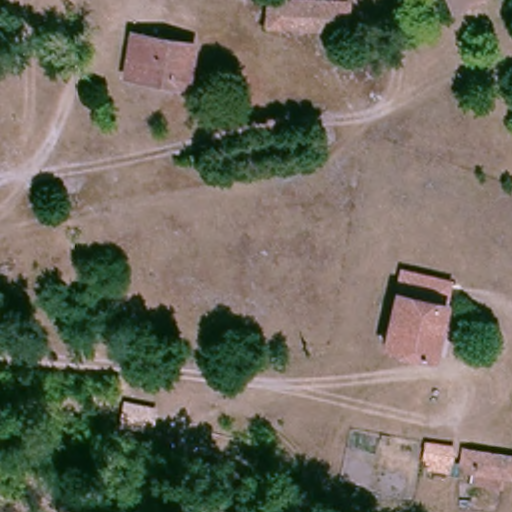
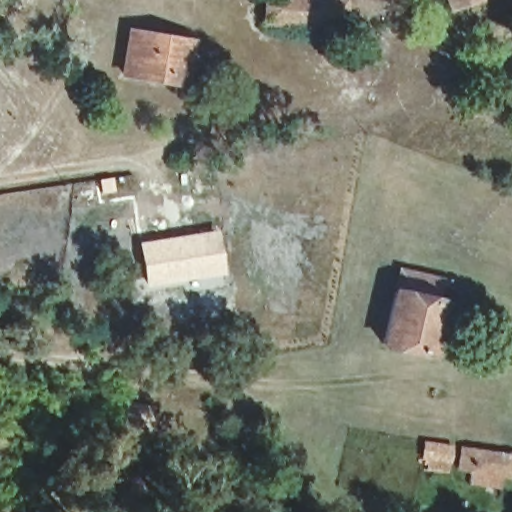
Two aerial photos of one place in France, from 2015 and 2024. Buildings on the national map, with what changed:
unchanged [(343,32),(261,28),(262,0),(344,0),(343,32)]
unchanged [(471,0),(457,5),(454,12),(449,0),(471,0)]
unchanged [(192,43),(183,85),(124,73),(133,32),(192,43)]
new [(218,229),(226,273),(146,287),(139,243),(218,229)]
unchanged [(400,284),(443,294),(438,313),(427,360),(384,351),(395,303),(400,284)]
unchanged [(152,414),(147,438),(118,431),(122,407),(152,414)]
unchanged [(451,446),(449,460),(420,455),(422,441),(451,446)]
unchanged [(512,456),(512,459),(509,477),(462,470),(465,447),(512,456)]

